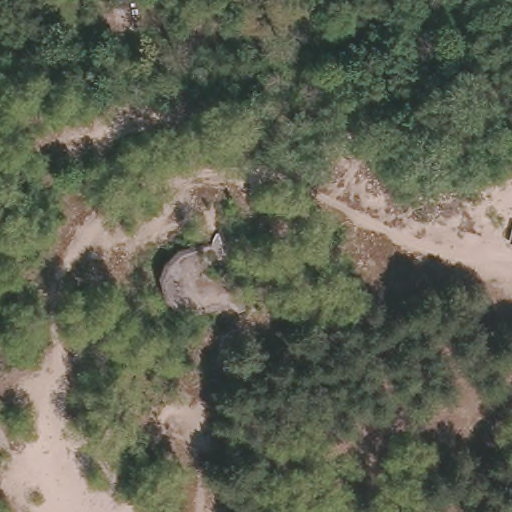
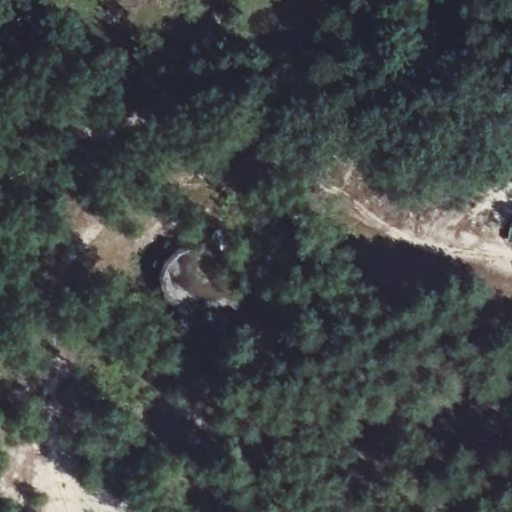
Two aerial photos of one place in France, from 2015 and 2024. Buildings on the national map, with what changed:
unchanged [(241,308),(227,302),(187,312),(166,295),(163,268),(175,250),(213,238),(221,223),(241,308)]

